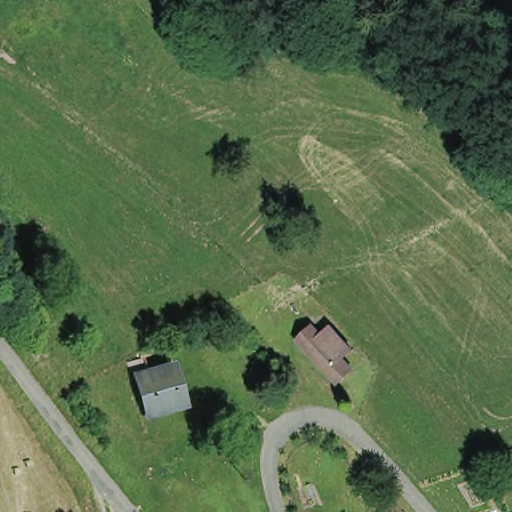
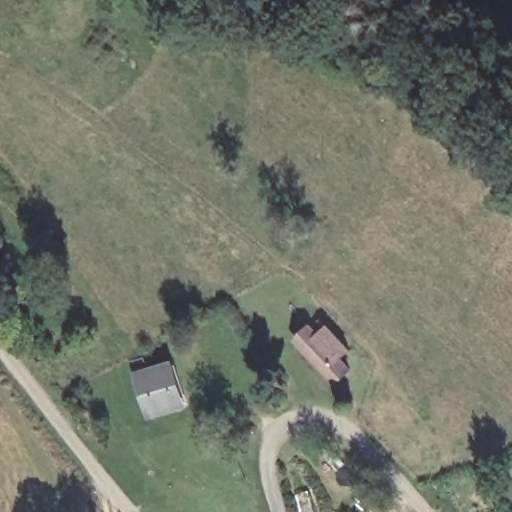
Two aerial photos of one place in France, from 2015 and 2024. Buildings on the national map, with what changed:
unchanged [(328,386),(286,341),(301,327),(311,336),(319,328),(341,352),(333,361),(343,372),(328,386)]
unchanged [(143,377),(174,367),(186,406),(155,415),(143,377)]

